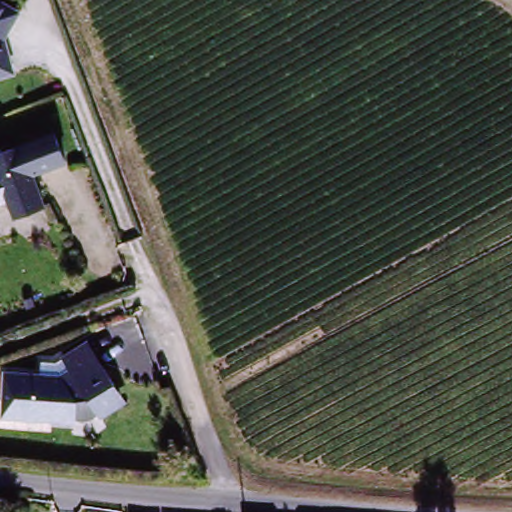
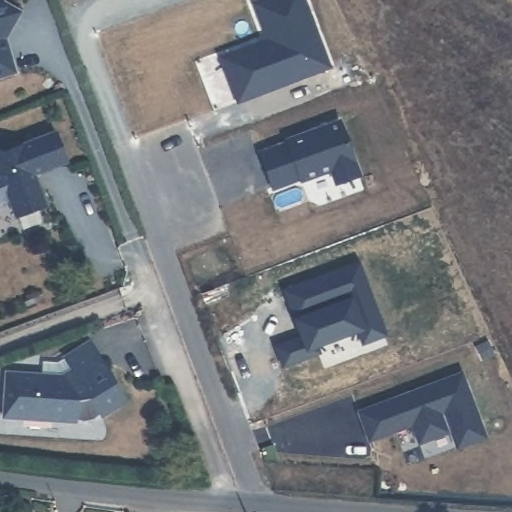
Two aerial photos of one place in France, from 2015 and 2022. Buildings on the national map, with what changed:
new [(328,67),(298,78),(296,71),(287,76),(289,81),(238,101),(221,58),(268,40),(254,4),(263,0),(302,0),(328,67)]
unchanged [(0,1),(19,11),(0,45),(0,1)]
unchanged [(8,50),(14,72),(0,76),(0,45),(2,52),(8,50)]
new [(287,143),(286,141),(299,136),(299,139),(309,135),(309,132),(339,121),(359,175),(336,184),(331,170),(300,180),(299,178),(272,189),(259,154),(287,143)]
unchanged [(16,221),(9,204),(0,207),(0,159),(55,137),(66,166),(33,179),(44,210),(16,221)]
new [(358,264),(388,345),(324,368),(318,352),(283,365),(277,347),(302,337),(299,330),(304,328),(300,319),(295,320),(284,290),(358,264)]
unchanged [(130,407),(105,423),(103,420),(92,426),(77,425),(77,429),(5,425),(9,380),(44,382),(45,368),(60,370),(67,365),(92,348),(130,407)]
new [(457,447),(450,430),(419,442),(412,424),(369,440),(359,412),(409,393),(418,390),(461,374),(484,437),(457,447)]

